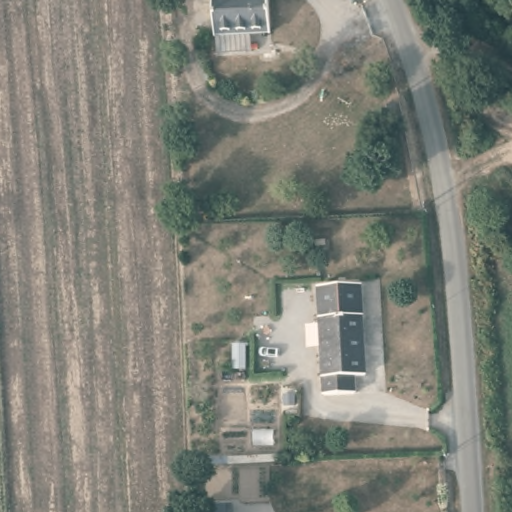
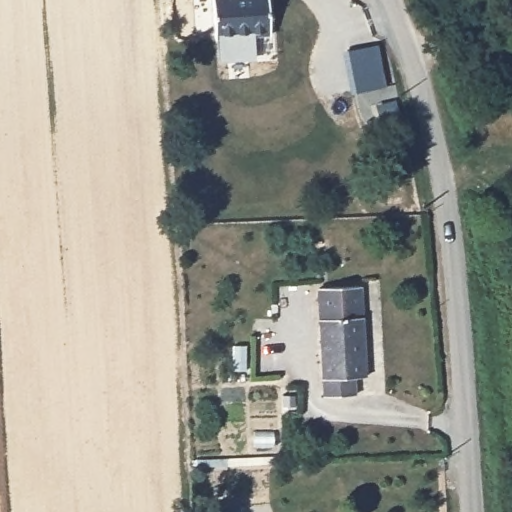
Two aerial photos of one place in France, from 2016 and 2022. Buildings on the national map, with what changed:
unchanged [(270,31),(216,37),(212,0),(266,0),(270,31)]
new [(350,95),(341,52),(376,45),(385,86),(350,95)]
unchanged [(314,287),(364,284),(370,371),(357,372),(358,392),(341,393),(321,394),(314,287)]

